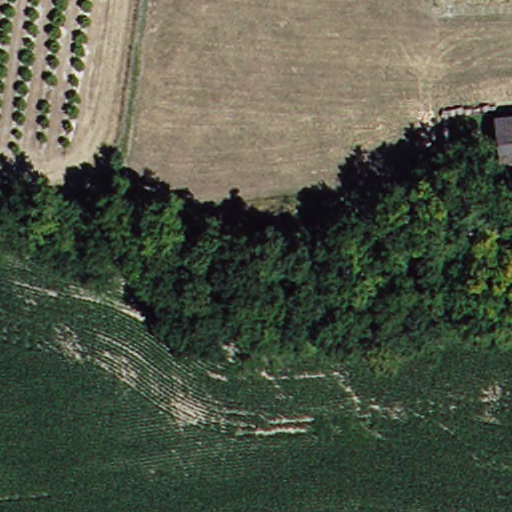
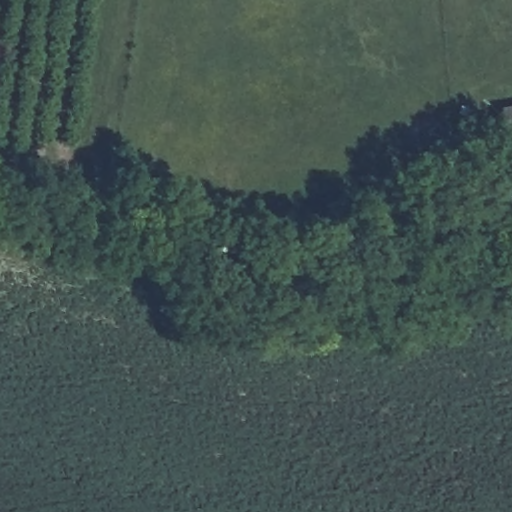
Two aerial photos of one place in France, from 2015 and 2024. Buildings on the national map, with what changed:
unchanged [(512,111),(512,159),(500,159),(497,112),(512,111)]

